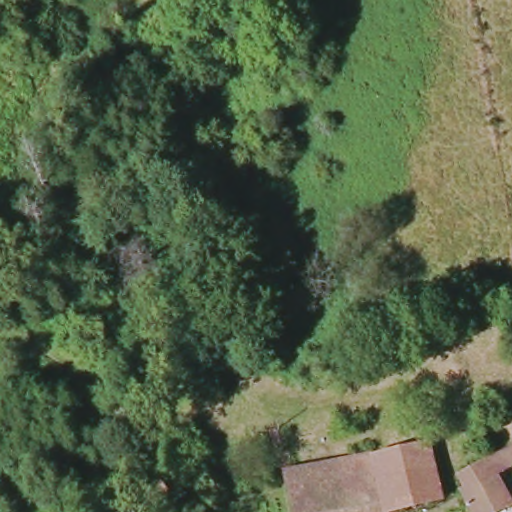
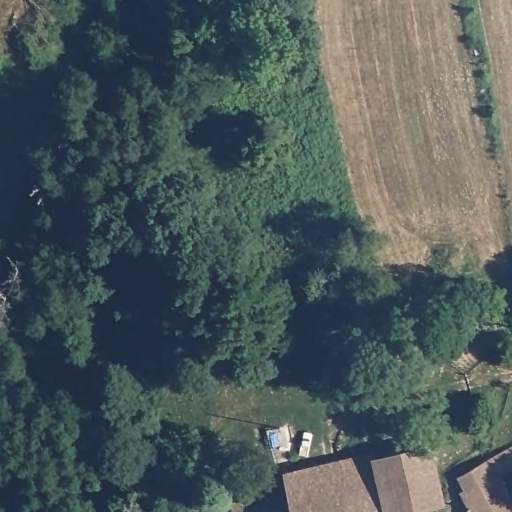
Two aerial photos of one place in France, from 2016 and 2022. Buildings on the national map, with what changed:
unchanged [(381,359),(388,377),(369,386),(361,367),(381,359)]
unchanged [(368,462),(424,449),(433,506),(400,512),(380,512),(368,462)]
unchanged [(457,500),(471,492),(464,477),(482,465),(499,456),(507,472),(491,482),(507,508),(499,512),(464,512),(457,500)]
unchanged [(278,476),(367,457),(368,462),(380,512),(286,512),(278,476)]
unchanged [(141,512),(169,487),(188,512),(141,512)]

